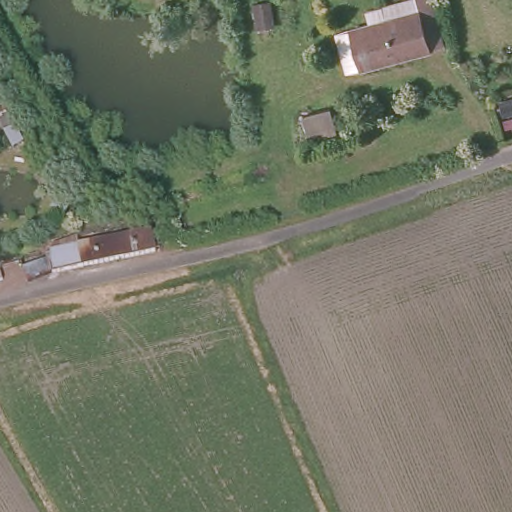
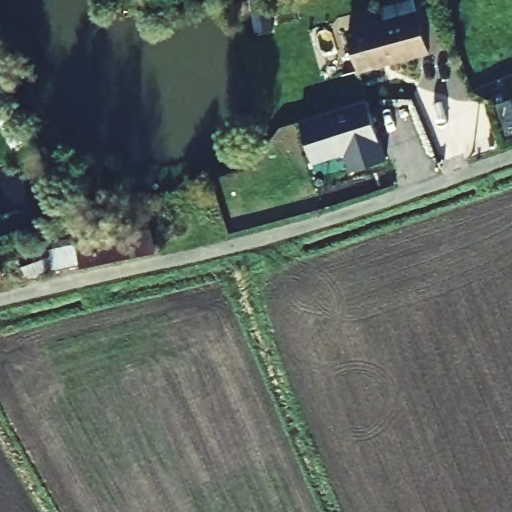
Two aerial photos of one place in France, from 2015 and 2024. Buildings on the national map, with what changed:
unchanged [(432,55),(349,76),(340,38),(408,22),(407,11),(420,7),(432,55)]
new [(388,156),(352,170),(347,154),(315,162),(302,118),(369,99),(388,156)]
unchanged [(22,281),(14,249),(147,221),(157,250),(22,281)]

